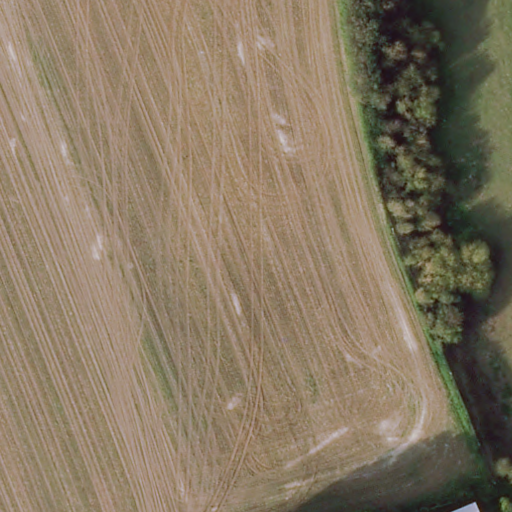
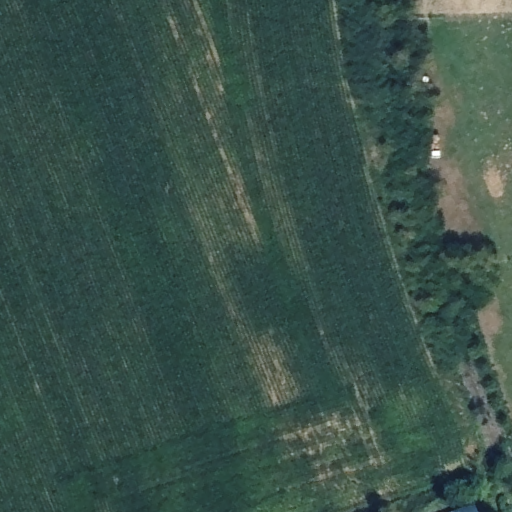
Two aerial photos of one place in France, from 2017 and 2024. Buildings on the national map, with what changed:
[]

